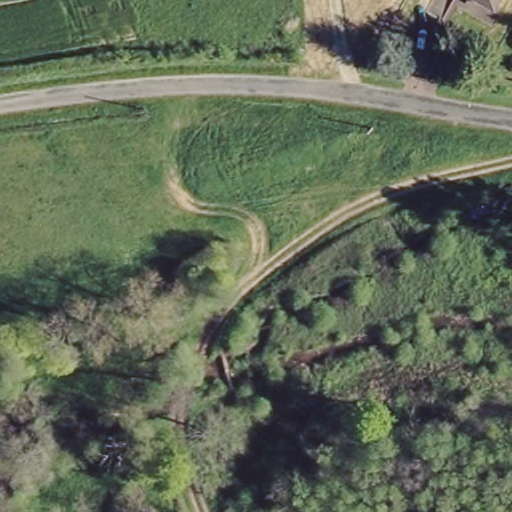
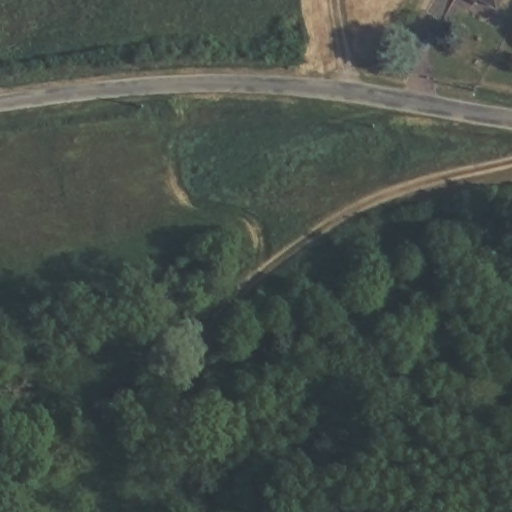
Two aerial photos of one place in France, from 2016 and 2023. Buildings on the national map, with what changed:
unchanged [(483,0),(502,0),(497,8),(483,0)]

